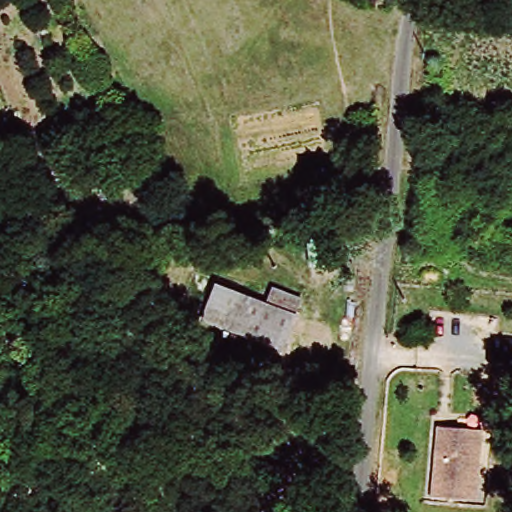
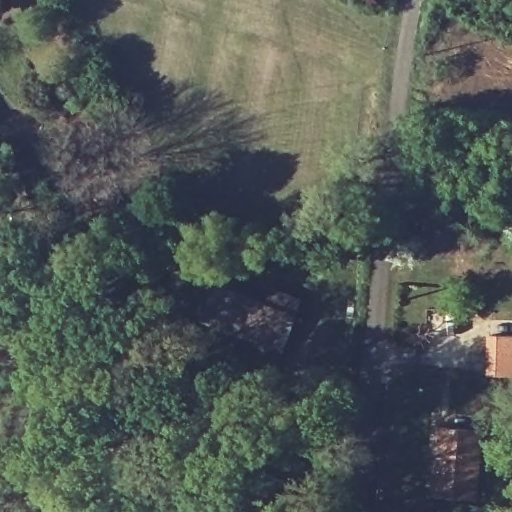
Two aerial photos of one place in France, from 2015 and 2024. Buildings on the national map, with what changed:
unchanged [(271,291),(298,301),(279,351),(200,321),(214,284),(266,304),(271,291)]
new [(512,337),(512,376),(486,373),(488,356),(490,335),(512,337)]
unchanged [(215,427),(218,440),(179,449),(176,435),(215,427)]
unchanged [(440,429),(483,434),(476,501),(433,497),(440,429)]
unchanged [(51,512),(40,512),(48,507),(51,512)]

